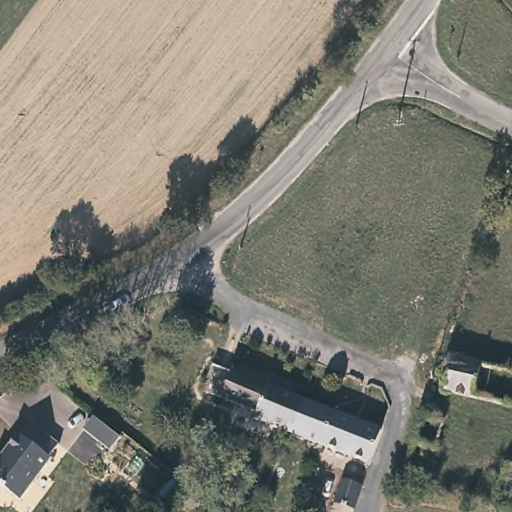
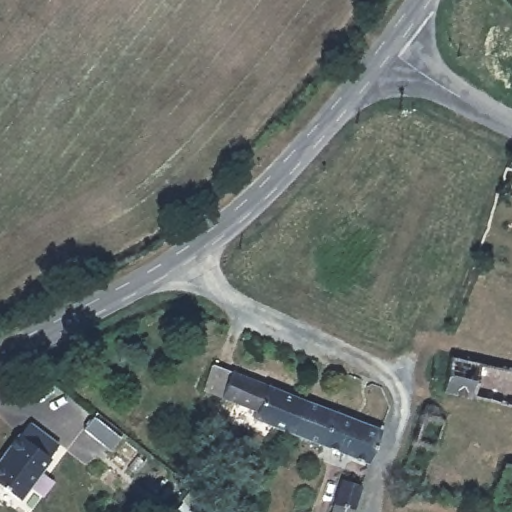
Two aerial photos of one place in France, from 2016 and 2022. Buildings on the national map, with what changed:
unchanged [(292,430),(290,430),(253,416),(256,406),(205,387),(214,360),(304,396),(292,430)]
unchanged [(335,408),(322,442),(292,430),(304,396),(335,408)]
unchanged [(447,412),(440,440),(421,433),(429,407),(447,412)]
unchanged [(335,408),(381,426),(368,459),(322,442),(335,408)]
unchanged [(57,445),(54,455),(25,492),(0,471),(0,455),(21,426),(26,427),(36,413),(64,436),(57,445)]
unchanged [(494,502),(508,455),(512,456),(512,506),(494,502)]
unchanged [(343,475),(361,481),(354,507),(352,512),(330,512),(334,501),(343,475)]
unchanged [(152,512),(134,512),(146,497),(156,507),(152,512)]

